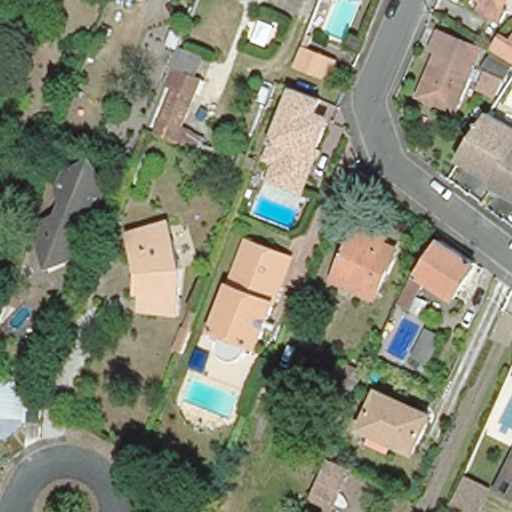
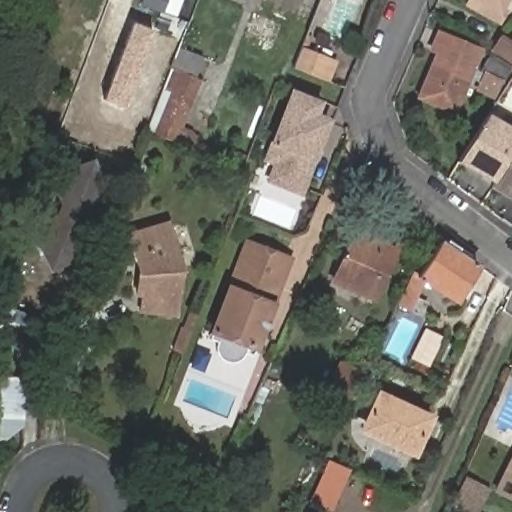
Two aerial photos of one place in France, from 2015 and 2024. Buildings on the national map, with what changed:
new [(144,6),(146,0),(169,0),(164,14),(144,6)]
unchanged [(478,13),(484,2),(480,0),(506,0),(494,21),(478,13)]
new [(132,22),(152,30),(123,109),(102,101),(132,22)]
unchanged [(499,95),(481,83),(497,58),(488,53),(501,32),(512,39),(512,76),(499,95)]
unchanged [(419,97),(437,55),(430,52),(437,35),(479,53),(472,70),(453,112),(419,97)]
unchanged [(300,62),(306,45),(341,57),(333,75),(300,62)]
unchanged [(182,78),(200,86),(179,138),(160,131),(182,78)]
unchanged [(327,94),(321,111),(327,114),(330,126),(320,154),(321,154),(307,188),(277,176),(283,158),(272,154),(301,83),(327,94)]
unchanged [(512,121),(512,196),(490,181),(493,175),(458,153),(468,137),(488,105),(512,121)]
unchanged [(59,215),(65,201),(59,188),(66,171),(85,163),(98,168),(106,187),(100,204),(85,210),(81,222),(86,237),(81,254),(50,268),(40,238),(47,221),(59,215)]
unchanged [(177,319),(140,314),(141,298),(136,298),(139,273),(130,237),(170,227),(183,272),(177,319)]
unchanged [(250,342),(246,343),(242,343),(239,343),(235,343),(232,342),(232,341),(228,340),(225,338),(222,335),(221,332),(219,329),(210,326),(212,320),(249,229),(291,246),(296,248),(284,277),(259,338),(256,344),(250,342)]
unchanged [(353,239),(358,241),(363,231),(386,241),(382,248),(395,254),(375,298),(334,280),(353,239)]
unchanged [(420,278),(425,281),(446,246),(481,269),(458,306),(428,292),(415,319),(402,313),(420,278)]
unchanged [(418,330),(437,337),(425,364),(408,357),(418,330)]
unchanged [(341,363),(352,368),(345,385),(333,380),(341,363)]
unchanged [(24,423),(0,442),(0,382),(25,395),(24,423)]
unchanged [(367,436),(384,400),(417,413),(420,422),(428,420),(431,432),(421,459),(367,436)]
unchanged [(498,492),(512,465),(512,500),(498,492)]
unchanged [(347,474),(332,511),(312,503),(326,466),(347,474)]
unchanged [(490,491),(480,512),(460,512),(451,507),(463,479),(490,491)]

